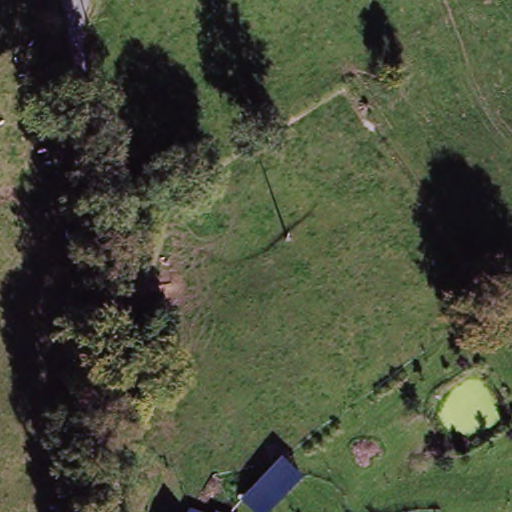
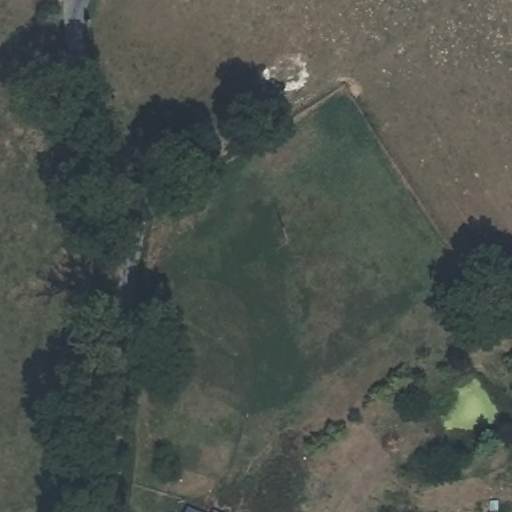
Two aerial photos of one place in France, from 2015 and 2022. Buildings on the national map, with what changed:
demolished [(300,481),(271,512),(247,512),(238,504),(280,460),(300,481)]
unchanged [(187,510),(193,512),(186,512),(187,510)]

